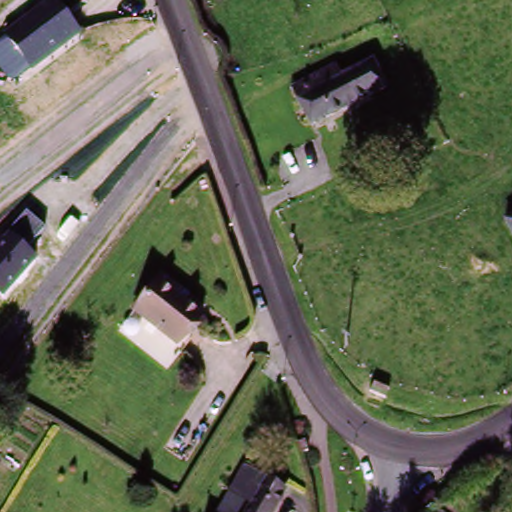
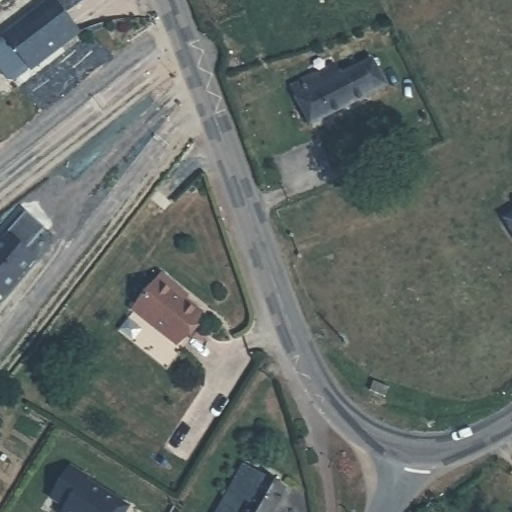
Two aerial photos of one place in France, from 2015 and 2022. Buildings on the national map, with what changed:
unchanged [(88,23),(41,58),(17,26),(51,0),(70,0),(88,23)]
unchanged [(25,71),(18,70),(1,48),(0,39),(17,26),(41,58),(25,71)]
unchanged [(299,106),(291,92),(302,86),(336,65),(345,80),(374,64),(388,56),(399,50),(414,77),(404,82),(389,91),(314,132),(299,106)]
unchanged [(25,212),(43,227),(28,247),(39,257),(5,297),(0,293),(0,242),(25,212)]
unchanged [(512,216),(512,240),(501,223),(512,216)]
unchanged [(180,348),(133,311),(155,282),(159,277),(188,298),(183,305),(202,320),(180,348)]
unchanged [(248,463),(261,471),(290,487),(279,506),(275,512),(219,512),(225,502),(248,463)]
new [(86,479),(128,507),(125,512),(64,512),(67,507),(52,496),(71,466),(88,477),(86,479)]

